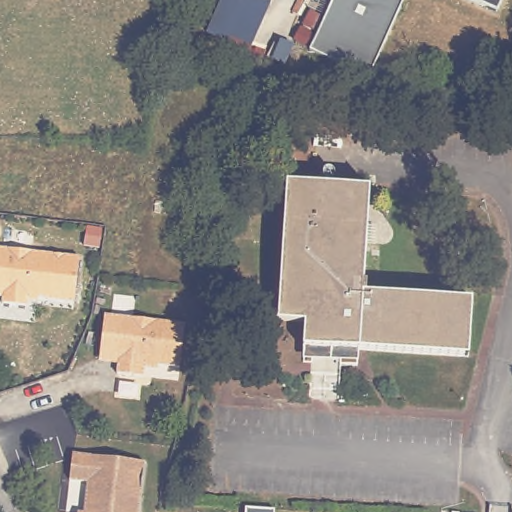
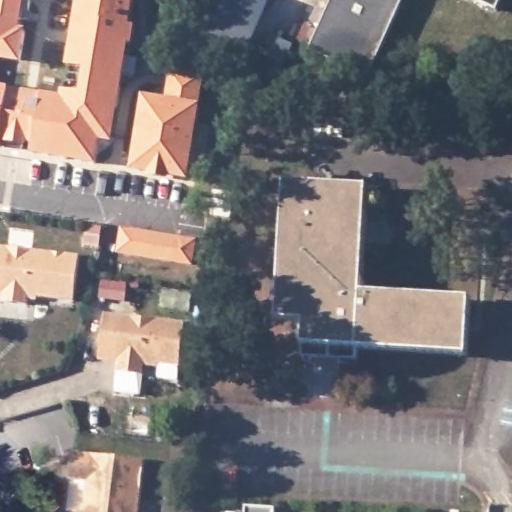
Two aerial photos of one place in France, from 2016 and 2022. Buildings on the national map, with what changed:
new [(19,29),(26,30),(22,65),(0,61),(0,0),(24,0),(19,29)]
new [(60,90),(64,90),(66,66),(77,0),(133,0),(129,25),(135,26),(133,46),(128,45),(111,144),(99,142),(96,165),(31,153),(31,145),(26,144),(26,147),(4,144),(5,140),(1,140),(0,146),(0,87),(60,97),(60,90)]
new [(220,0),(261,0),(269,4),(246,53),(205,35),(220,0)]
unchanged [(334,0),(406,0),(372,78),(311,52),(334,0)]
unchanged [(498,10),(475,0),(502,0),(498,10)]
new [(142,96),(164,98),(168,72),(204,77),(201,104),(188,180),(171,177),(170,181),(147,177),(147,174),(129,170),(142,96)]
unchanged [(361,282),(365,282),(364,293),(470,301),(467,357),(357,349),(356,365),(339,363),(337,398),(307,396),(310,346),(301,345),(302,322),(276,320),(284,183),(367,189),(361,282)]
new [(119,227),(195,239),(191,266),(115,252),(119,227)]
unchanged [(26,303),(1,301),(2,295),(0,295),(0,246),(78,255),(73,300),(37,296),(37,301),(27,299),(26,303)]
unchanged [(145,365),(143,375),(118,371),(119,362),(100,358),(101,354),(106,313),(185,322),(181,363),(158,361),(158,366),(145,365)]
unchanged [(140,512),(78,512),(78,511),(85,512),(88,481),(70,477),(73,452),(145,461),(140,512)]
new [(274,507),(274,512),(245,512),(245,505),(274,507)]

